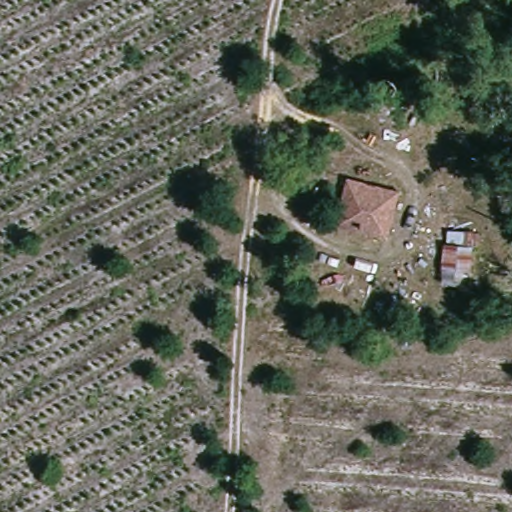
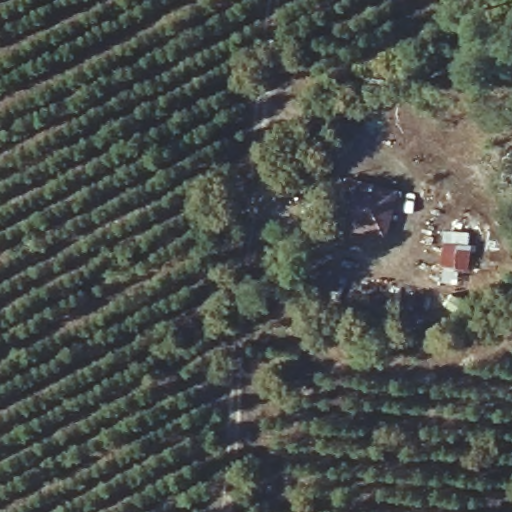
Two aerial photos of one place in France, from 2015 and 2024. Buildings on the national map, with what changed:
unchanged [(349,181),(395,190),(384,229),(342,222),(349,181)]
unchanged [(473,228),(470,272),(440,271),(444,227),(473,228)]

